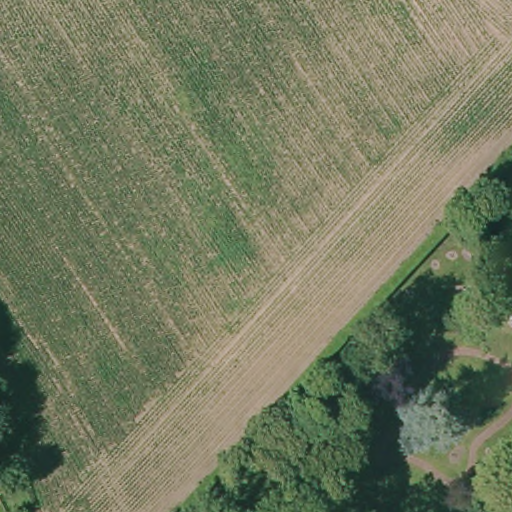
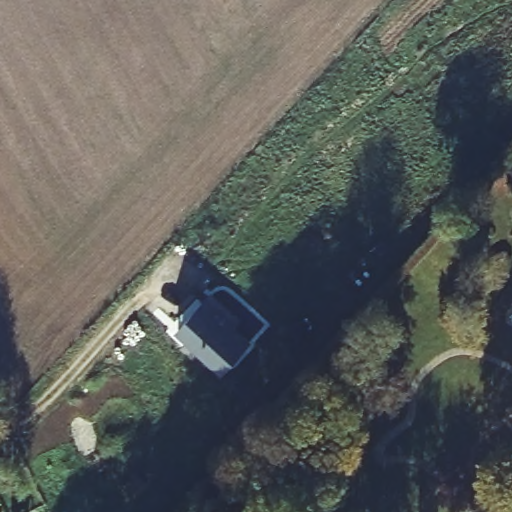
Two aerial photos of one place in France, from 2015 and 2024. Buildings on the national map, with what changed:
new [(201,308),(211,296),(237,320),(231,327),(248,342),(221,372),(177,332),(200,307),(201,308)]

